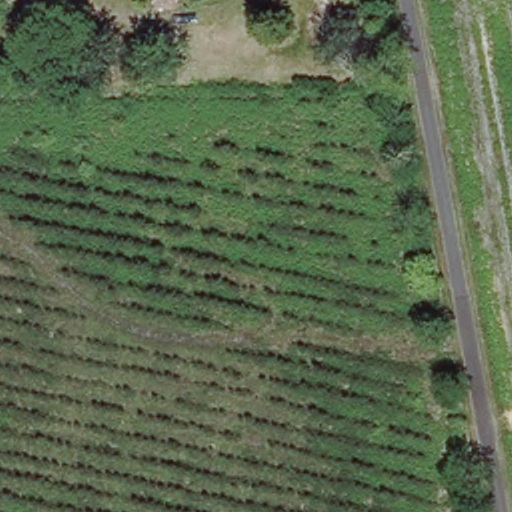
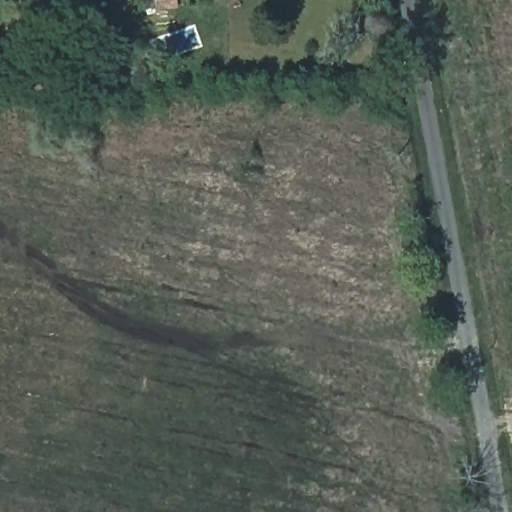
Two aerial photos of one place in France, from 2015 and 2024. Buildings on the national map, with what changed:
unchanged [(155,10),(155,0),(172,0),(172,11),(155,10)]

